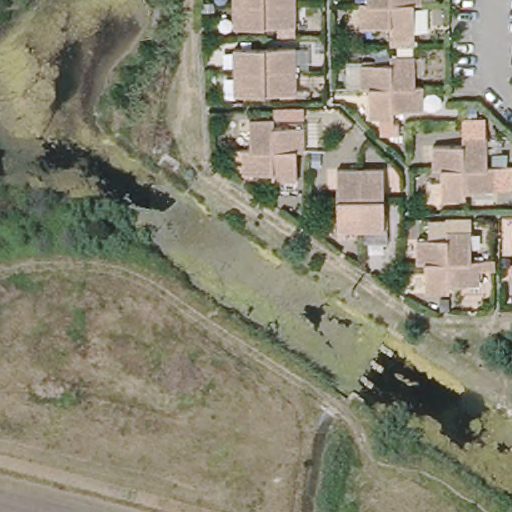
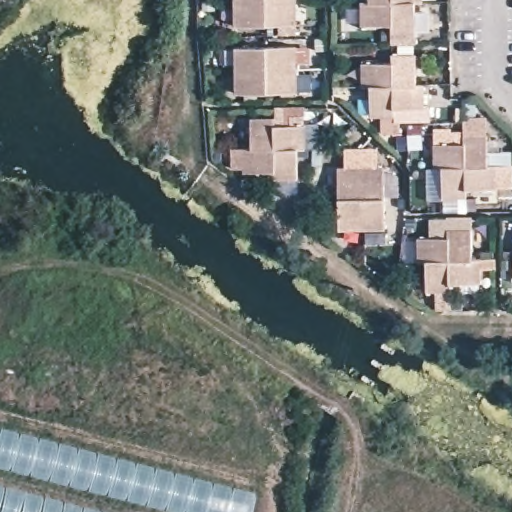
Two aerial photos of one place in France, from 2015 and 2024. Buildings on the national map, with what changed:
unchanged [(235,26),(234,0),(294,0),(295,26),(235,26)]
unchanged [(295,89),(235,90),(235,44),(293,43),(295,89)]
unchanged [(412,82),(420,82),(420,105),(391,106),(391,113),(368,114),(367,83),(360,83),(360,61),(390,60),(390,53),(412,53),(412,82)]
unchanged [(300,146),(291,146),(291,177),(270,177),(270,169),(240,170),(239,148),(247,148),(247,118),(270,118),(270,125),(299,124),(300,146)]
unchanged [(485,165),(492,166),(493,188),(464,188),(463,195),(440,195),(440,166),(433,166),(433,143),(462,143),(462,135),(485,135),(485,165)]
unchanged [(387,228),(341,228),(341,168),(387,168),(387,228)]
unchanged [(470,257),(476,257),(476,279),(447,280),(447,288),(425,288),(425,258),(417,258),(417,236),(447,235),(447,227),(468,226),(470,257)]
new [(256,493),(252,512),(170,512),(0,469),(0,426),(256,493)]
new [(105,512),(0,512),(0,485),(105,512)]

